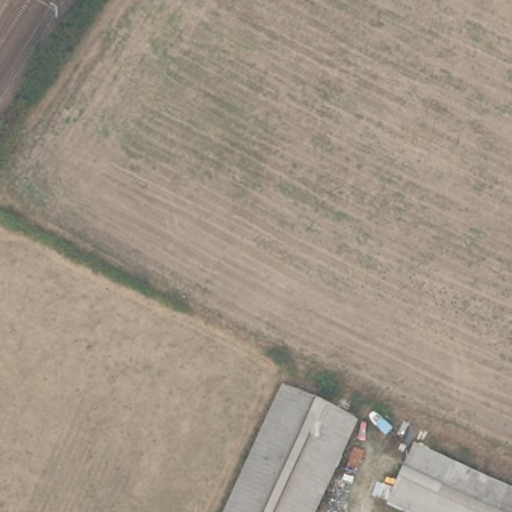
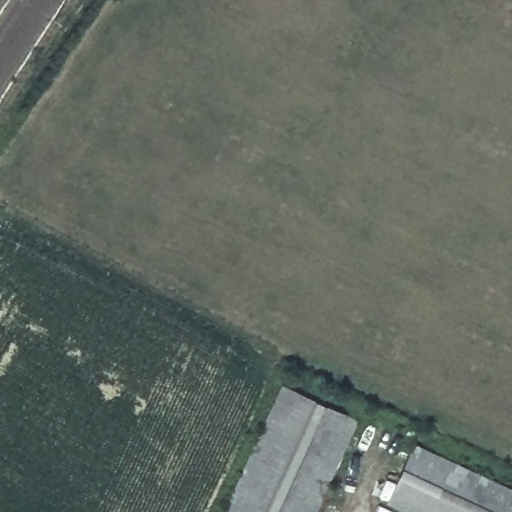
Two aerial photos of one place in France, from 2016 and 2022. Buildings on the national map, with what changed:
unchanged [(223,512),(287,378),(358,411),(310,512),(223,512)]
unchanged [(404,512),(384,502),(410,448),(512,497),(512,512),(404,512)]

